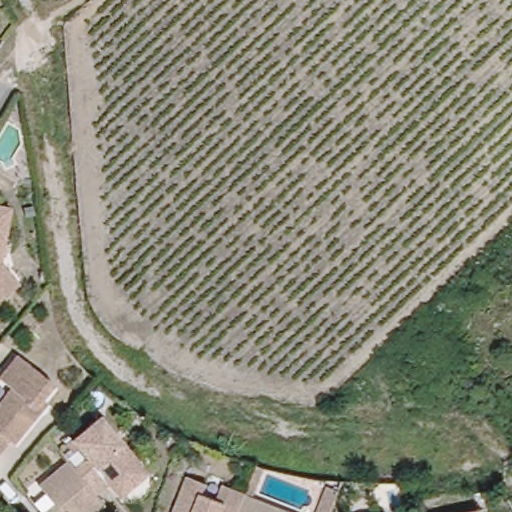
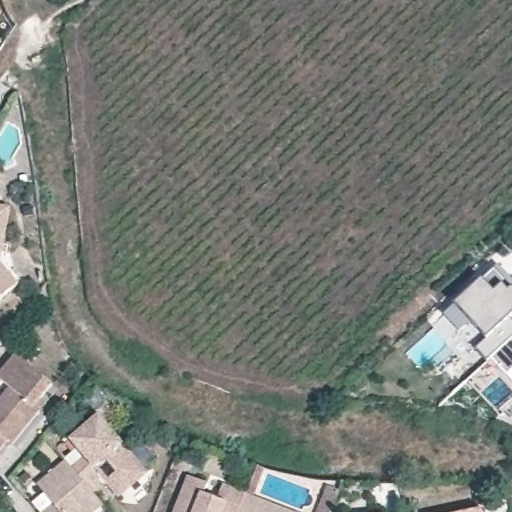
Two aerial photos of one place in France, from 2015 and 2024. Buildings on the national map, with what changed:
unchanged [(10,291),(0,299),(0,207),(10,209),(3,248),(0,263),(18,284),(10,291)]
new [(492,359),(489,362),(477,349),(489,339),(471,319),(460,328),(447,313),(459,304),(500,269),(512,283),(512,317),(512,318),(512,373),(508,377),(492,359)]
unchanged [(47,403),(40,412),(13,444),(8,439),(0,449),(0,400),(11,388),(0,379),(0,375),(17,354),(54,384),(42,399),(47,403)]
unchanged [(112,490),(100,500),(78,473),(90,463),(76,446),(106,421),(152,479),(138,490),(123,503),(112,490)]
unchanged [(78,473),(100,500),(109,511),(107,512),(55,512),(59,509),(43,489),(72,466),(78,473)]
unchanged [(241,512),(175,512),(189,476),(209,484),(205,494),(218,499),(223,485),(248,494),(241,512)]
unchanged [(248,494),(293,512),(241,512),(248,494)]

